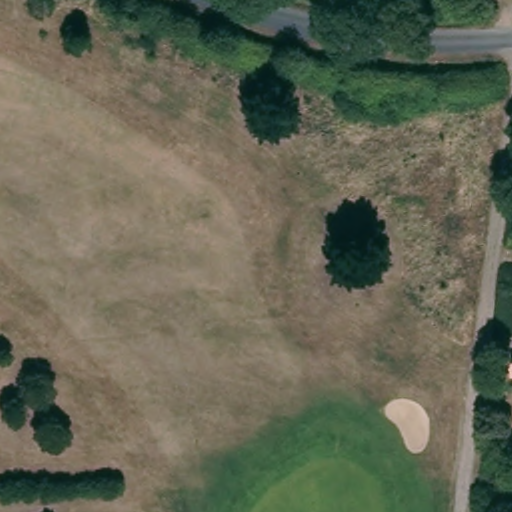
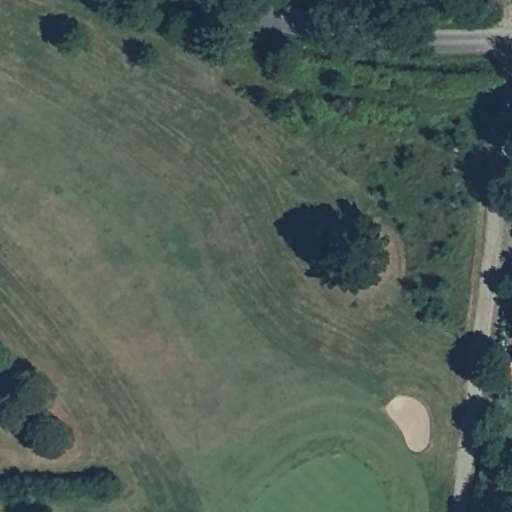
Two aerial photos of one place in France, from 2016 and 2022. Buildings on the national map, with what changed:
unchanged [(509,353),(512,338),(512,354),(509,353)]

